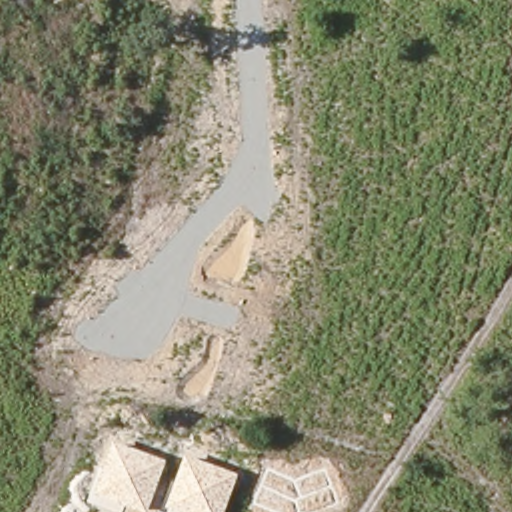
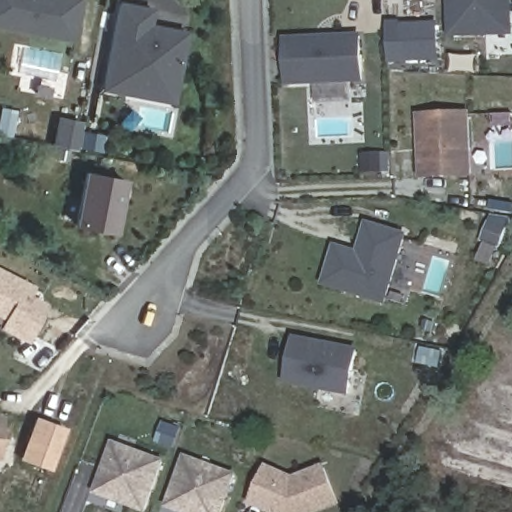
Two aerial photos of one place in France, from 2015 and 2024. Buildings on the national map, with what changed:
new [(0,29),(0,0),(82,0),(73,43),(0,29)]
new [(512,0),(512,36),(450,38),(449,0),(512,0)]
new [(188,32),(174,104),(102,91),(119,2),(154,8),(152,25),(188,32)]
new [(439,21),(440,61),(401,63),(399,24),(439,21)]
new [(364,84),(285,88),(283,38),(362,33),(364,84)]
new [(420,179),(416,113),(471,110),(475,177),(420,179)]
new [(58,119),(80,124),(74,150),(53,146),(58,119)]
new [(116,234),(74,226),(85,171),(127,179),(116,234)]
new [(324,285),(335,244),(357,252),(367,221),(408,234),(386,304),(324,285)]
new [(30,294),(46,304),(28,343),(0,328),(0,325),(3,319),(0,317),(0,268),(34,285),(30,294)]
new [(350,394),(285,384),(293,337),(358,348),(350,394)]
new [(0,459),(0,414),(3,414),(0,459)]
new [(34,417),(64,428),(50,467),(19,456),(34,417)]
unchanged [(147,512),(146,512),(94,494),(113,442),(166,460),(147,512)]
unchanged [(224,512),(180,512),(165,507),(185,456),(238,474),(224,512)]
unchanged [(324,469),(336,503),(314,512),(277,512),(253,503),(267,469),(294,480),(324,469)]

